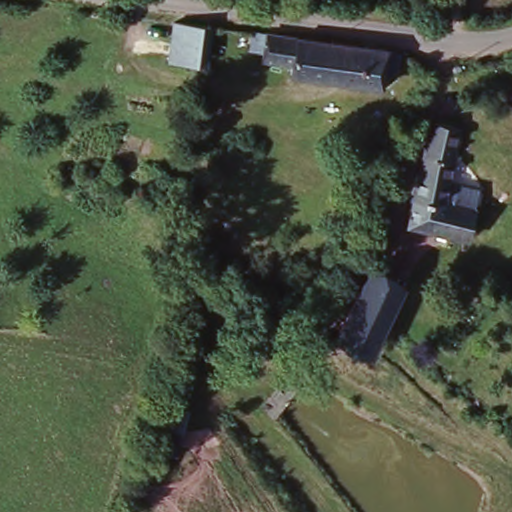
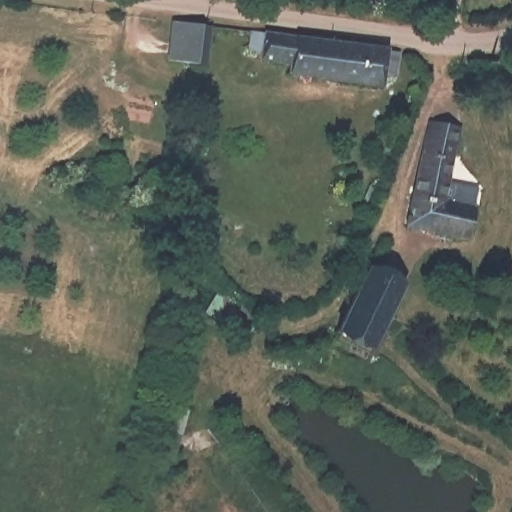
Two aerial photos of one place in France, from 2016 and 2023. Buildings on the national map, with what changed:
unchanged [(377,75),(375,85),(286,72),(286,60),(259,56),(261,47),(247,45),(249,29),(380,48),(393,53),(391,77),(377,75)]
unchanged [(431,128),(459,134),(448,188),(478,195),(467,243),(409,230),(431,128)]
unchanged [(384,277),(405,292),(386,333),(365,313),(384,277)]

